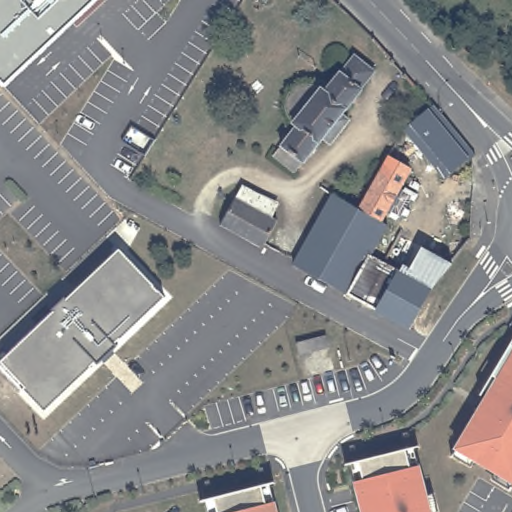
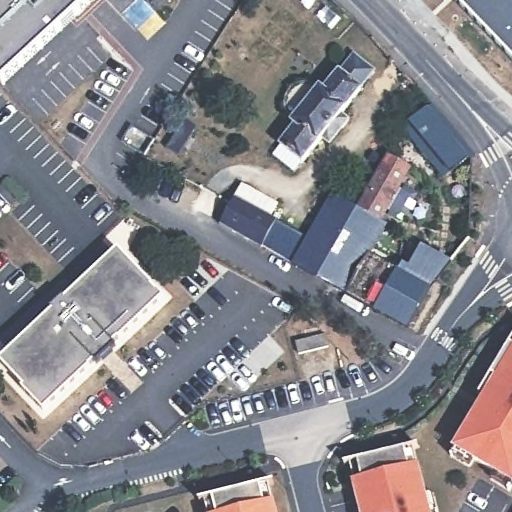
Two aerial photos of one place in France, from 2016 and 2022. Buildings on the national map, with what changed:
unchanged [(94,0),(5,84),(0,79),(0,0),(94,0)]
new [(512,0),(512,61),(453,0),(512,0)]
unchanged [(297,130),(292,126),(295,124),(290,117),(288,110),(290,100),(294,94),(304,90),(318,93),(320,95),(322,94),(325,96),(340,80),(342,79),(356,63),(374,78),(360,95),(361,97),(342,120),(348,127),(331,150),(323,144),(293,176),(273,158),(297,130)]
unchanged [(472,153),(442,177),(402,130),(432,105),(472,153)]
unchanged [(294,261),(292,260),(293,235),(318,191),(316,189),(318,185),(358,209),(390,157),(410,170),(380,222),(384,225),(367,255),(345,294),(293,264),(294,261)]
unchanged [(247,183),(289,206),(267,245),(226,222),(247,183)]
unchanged [(384,225),(451,263),(430,289),(428,290),(367,255),(384,225)]
unchanged [(164,297),(115,345),(117,346),(97,365),(96,363),(45,412),(23,390),(25,388),(1,362),(53,311),(52,310),(64,298),(66,300),(118,249),(164,297)]
unchanged [(367,255),(428,290),(407,330),(345,294),(367,255)]
unchanged [(451,455),(455,448),(487,393),(482,390),(491,375),(509,343),(512,338),(512,484),(509,490),(491,479),(495,472),(473,459),(469,466),(451,455)]
unchanged [(355,481),(350,463),(357,461),(405,449),(412,447),(417,465),(425,495),(432,493),(437,512),(362,512),(355,481)]
unchanged [(205,500),(212,497),(260,485),(267,483),(272,502),(275,512),(208,512),(205,500)]

